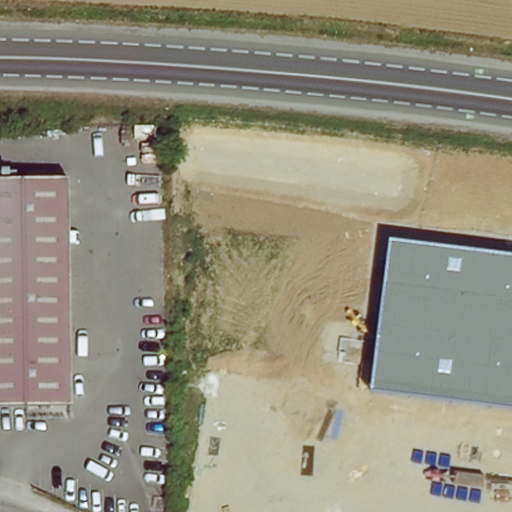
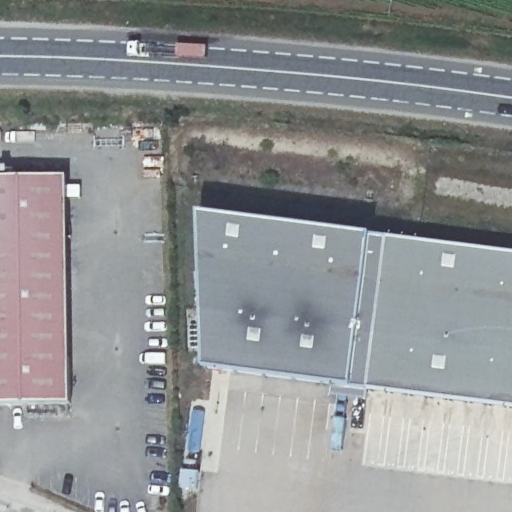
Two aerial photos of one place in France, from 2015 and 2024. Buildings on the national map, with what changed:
unchanged [(73,396),(0,399),(0,174),(65,172),(73,396)]
new [(351,389),(207,372),(203,218),(373,240),(389,242),(369,393),(351,389)]
unchanged [(369,393),(389,242),(512,257),(512,411),(369,393)]

